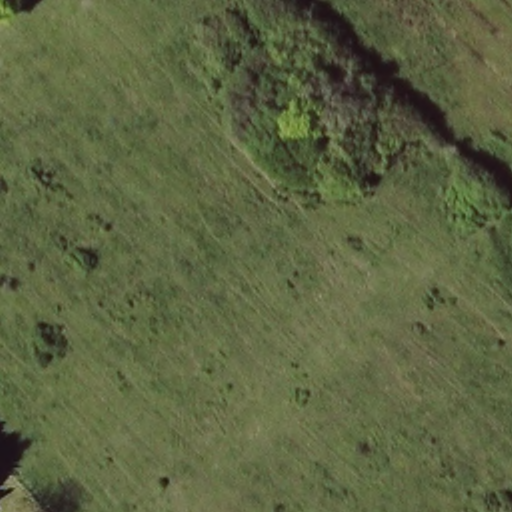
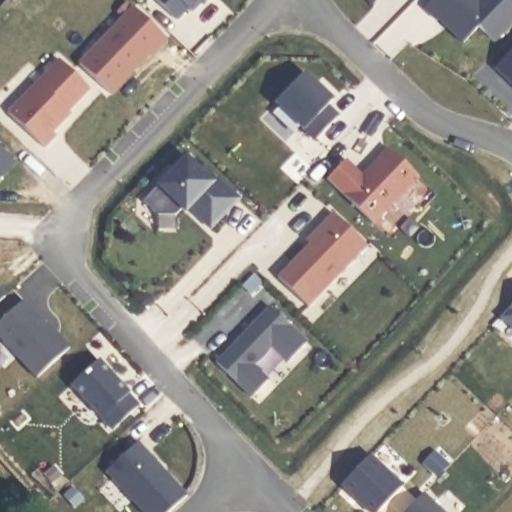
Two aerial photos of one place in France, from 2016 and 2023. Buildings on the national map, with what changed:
new [(191,12),(186,6),(176,19),(156,0),(202,0),(191,12)]
new [(495,42),(479,27),(464,43),(438,19),(437,21),(425,9),(433,0),(512,0),(512,24),(495,42)]
new [(134,8),(167,40),(151,57),(149,56),(112,95),(80,64),(134,8)]
new [(493,69),(512,50),(512,87),(493,69)]
new [(60,60),(91,89),(64,117),(67,119),(53,133),(57,136),(45,148),(9,113),(60,60)]
new [(305,73),(334,101),(328,106),(339,117),(316,141),(276,103),(305,73)]
new [(16,162),(0,178),(0,147),(16,162)]
new [(347,160),(363,175),(389,148),(420,178),(375,225),(328,179),(347,160)]
new [(187,157),(214,182),(218,178),(240,199),(212,229),(190,209),(186,213),(183,209),(176,215),(158,216),(144,202),(187,157)]
new [(310,244),(307,241),(334,213),(368,246),(309,307),(278,277),(310,244)]
new [(6,297),(0,302),(0,290),(6,297)]
new [(24,300),(57,336),(59,334),(71,347),(38,378),(0,337),(0,322),(24,300)]
new [(501,316),(512,304),(512,327),(501,316)]
new [(240,339),(242,341),(248,336),(246,333),(271,307),(308,343),(289,362),(271,346),(253,365),(269,380),(253,397),(217,363),(240,339)]
new [(102,357),(132,390),(131,392),(142,403),(115,428),(74,382),(102,357)]
new [(190,492),(168,512),(149,512),(109,468),(141,439),(190,492)]
new [(370,512),(339,484),(368,453),(404,486),(379,512),(370,512)]
new [(446,512),(402,512),(422,490),(446,512)]

